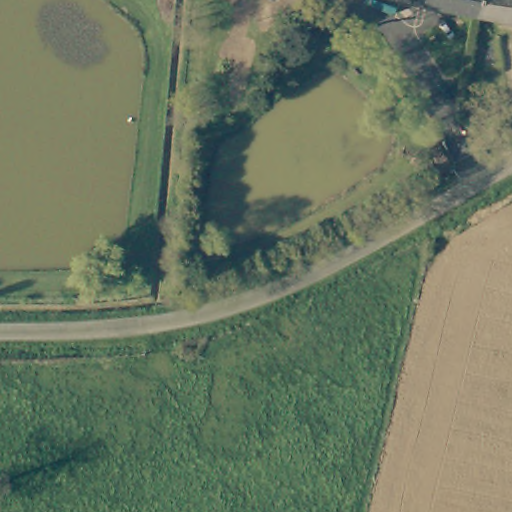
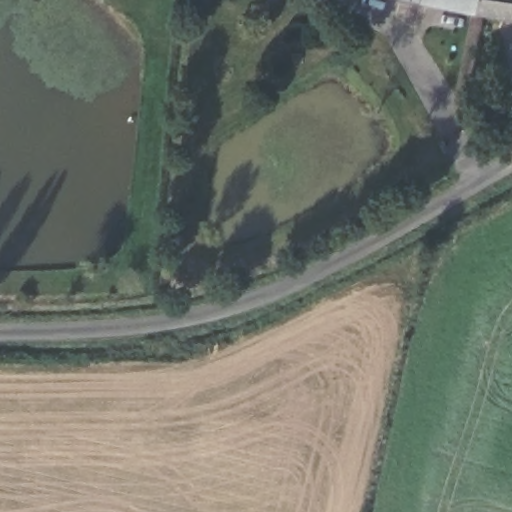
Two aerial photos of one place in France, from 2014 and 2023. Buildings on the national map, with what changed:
unchanged [(406,2),(396,0),(486,0),(483,16),(406,2)]
unchanged [(486,0),(512,0),(512,21),(483,16),(486,0)]

